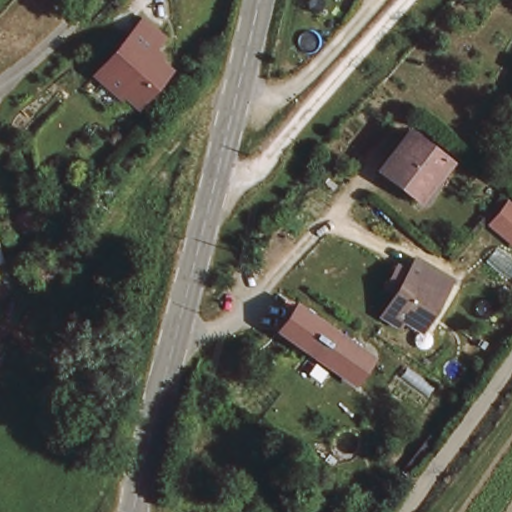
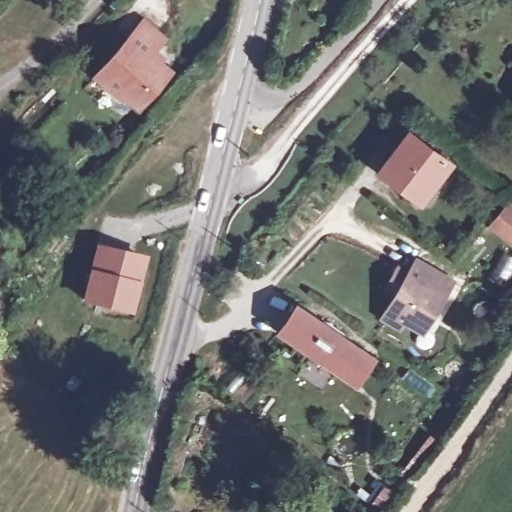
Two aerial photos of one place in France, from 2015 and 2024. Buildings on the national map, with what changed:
unchanged [(94,86),(105,73),(104,72),(98,67),(113,50),(145,12),(166,30),(155,42),(165,49),(161,54),(172,63),(140,99),(140,98),(113,103),(94,86)]
unchanged [(407,132),(447,163),(420,197),(381,167),(407,132)]
unchanged [(504,235),(488,222),(505,204),(512,209),(512,242),(504,235)]
new [(143,260),(130,311),(83,298),(97,247),(143,260)]
unchanged [(385,322),(388,316),(397,299),(387,293),(398,273),(410,280),(417,266),(454,288),(425,338),(407,328),(404,334),(385,322)]
unchanged [(357,385),(345,376),(280,333),(297,308),(362,352),(373,360),(357,385)]

